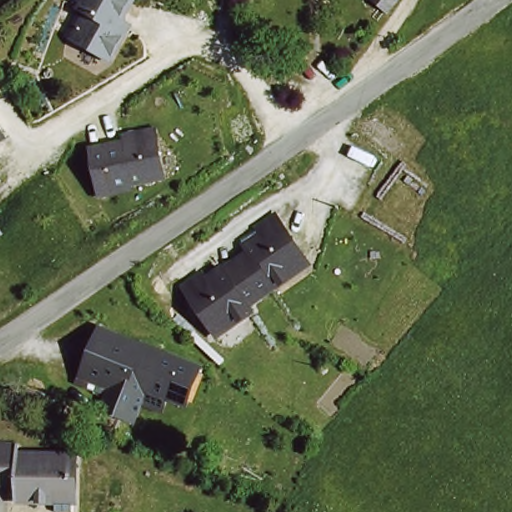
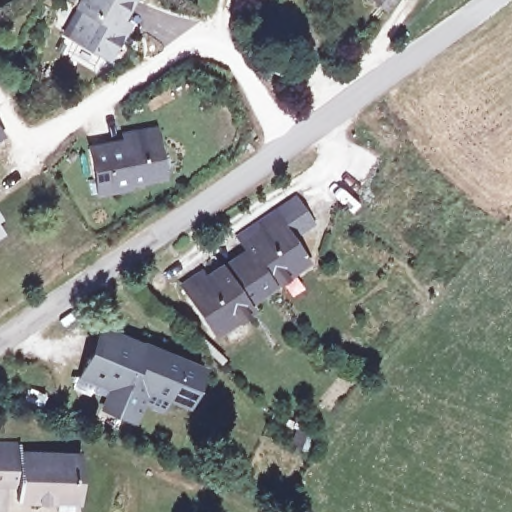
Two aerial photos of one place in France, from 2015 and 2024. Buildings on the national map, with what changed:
unchanged [(71,36),(87,11),(80,7),(84,0),(130,0),(133,2),(116,29),(123,34),(106,59),(71,36)]
unchanged [(0,139),(0,132),(4,137),(0,139)]
unchanged [(167,175),(119,185),(120,189),(105,193),(96,147),(159,135),(167,175)]
unchanged [(289,280),(258,299),(236,263),(249,256),(245,247),(261,237),(256,227),(277,215),(303,260),(308,269),(289,280)]
unchanged [(211,328),(188,293),(183,284),(201,272),(207,281),(222,272),(236,263),(258,299),(248,306),(252,316),(235,324),(215,335),(211,328)]
unchanged [(183,412),(147,400),(136,422),(106,410),(113,392),(75,378),(98,325),(204,367),(183,412)]
unchanged [(0,482),(0,445),(19,446),(19,457),(70,461),(69,505),(17,504),(18,482),(0,482)]

